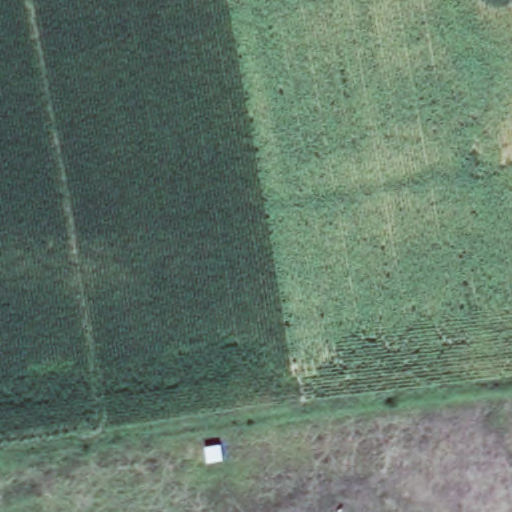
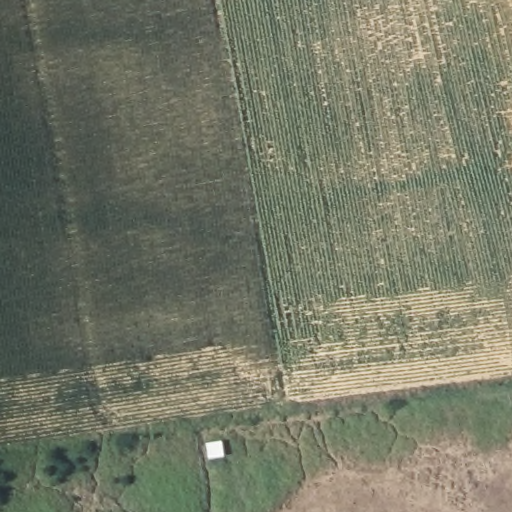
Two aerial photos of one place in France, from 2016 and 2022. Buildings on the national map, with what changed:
[]

